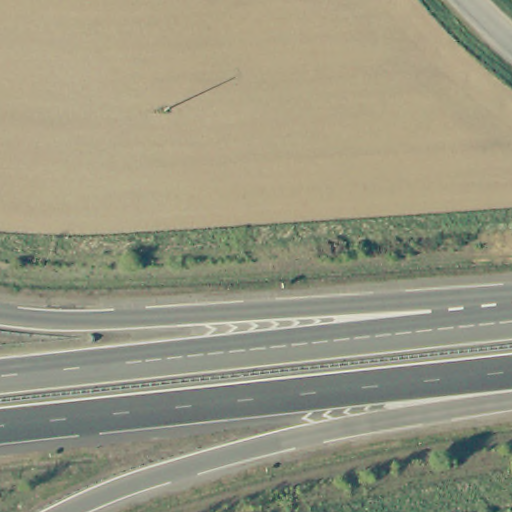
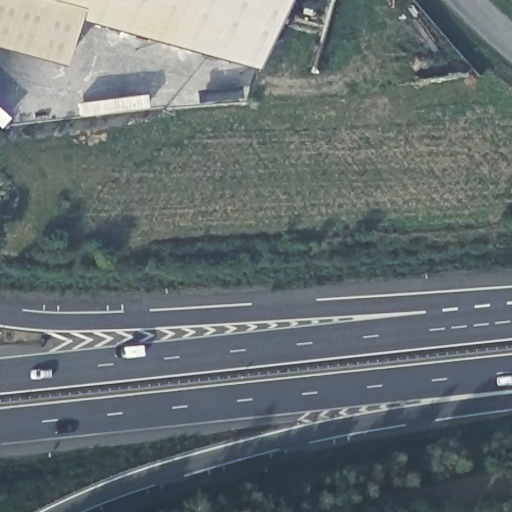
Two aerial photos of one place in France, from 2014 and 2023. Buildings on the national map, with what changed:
new [(76,16),(65,64),(0,46),(0,0),(274,0),(255,67),(76,16)]

